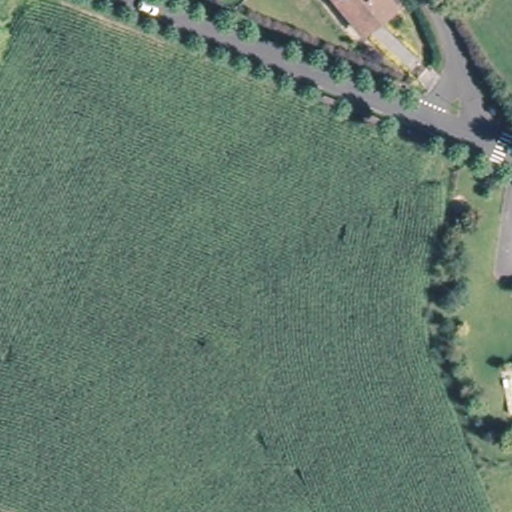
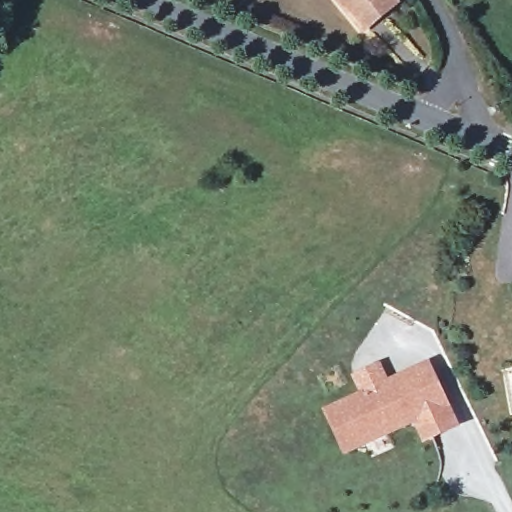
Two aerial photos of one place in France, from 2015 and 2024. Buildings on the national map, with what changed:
unchanged [(402,10),(363,40),(329,0),(395,0),(402,10)]
new [(322,410),(428,362),(459,428),(422,445),(412,426),(344,457),(322,410)]

